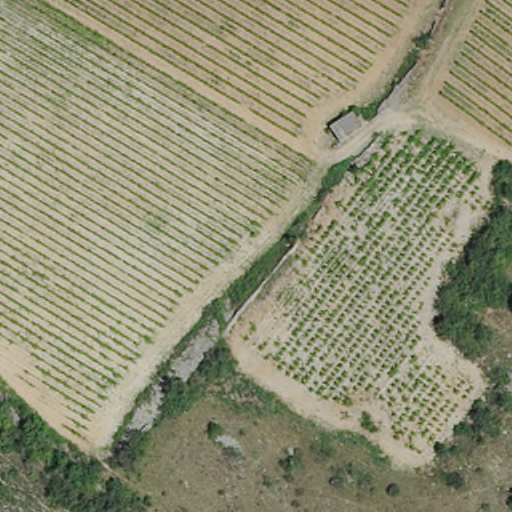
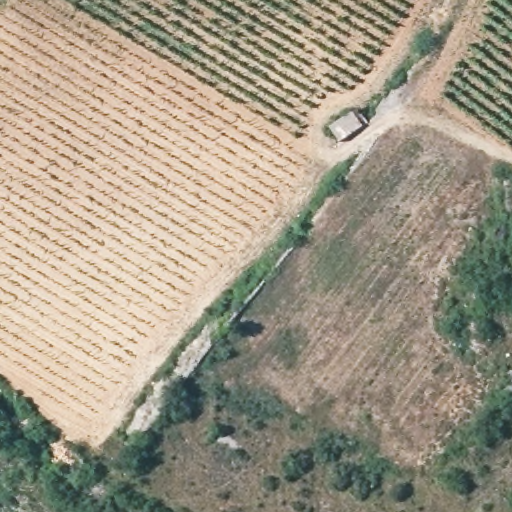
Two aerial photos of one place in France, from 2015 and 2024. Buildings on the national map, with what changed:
unchanged [(330,126),(354,112),(361,128),(339,142),(330,126)]

